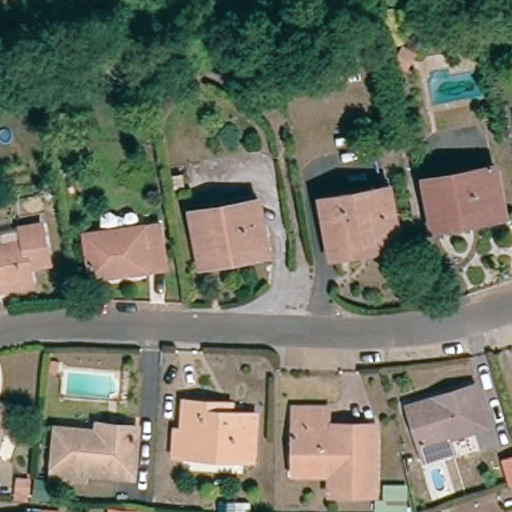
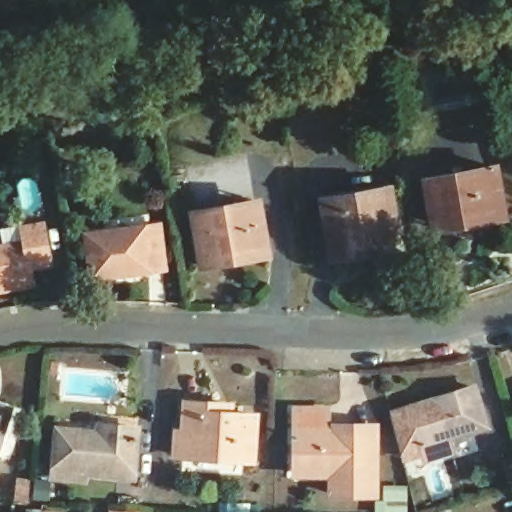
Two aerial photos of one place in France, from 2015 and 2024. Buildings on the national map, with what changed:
unchanged [(434,229),(425,181),(495,169),(505,222),(482,226),(435,234),(434,229)]
unchanged [(354,257),(332,260),(322,201),(387,190),(391,216),(397,250),(354,257)]
unchanged [(221,268),(202,271),(193,215),(247,205),(257,203),(262,235),(265,254),(266,261),(221,268)]
unchanged [(0,297),(0,251),(27,246),(25,234),(44,230),(52,271),(32,275),(34,284),(35,292),(19,294),(0,297)]
unchanged [(92,241),(157,232),(162,276),(97,285),(92,241)]
unchanged [(485,430),(447,440),(452,454),(422,462),(410,417),(407,408),(438,399),(474,390),(485,430)]
unchanged [(251,462),(174,458),(175,434),(182,434),(184,403),(205,404),(230,406),(229,415),(253,417),(251,462)]
unchanged [(0,405),(9,408),(0,436),(0,405)]
unchanged [(295,469),(294,411),(327,410),(327,429),(340,429),(373,429),(373,438),(373,495),(330,495),(330,477),(295,477),(295,469)]
unchanged [(52,479),(54,466),(57,430),(96,433),(97,427),(140,431),(135,480),(84,475),(84,482),(52,479)]
unchanged [(512,460),(512,482),(506,462),(512,460)]
unchanged [(109,511),(125,512),(109,512),(109,511)]

